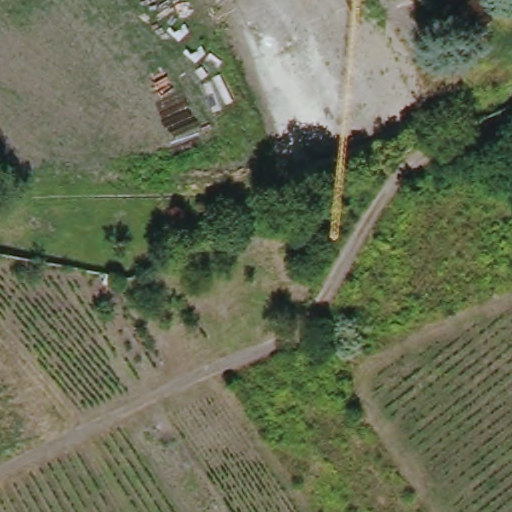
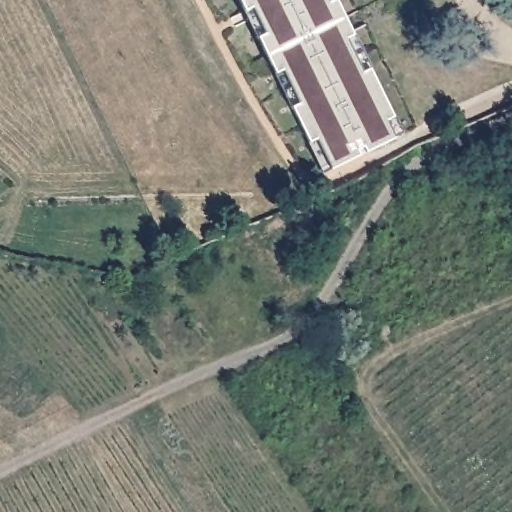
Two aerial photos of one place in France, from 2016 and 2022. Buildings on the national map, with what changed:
new [(330,4),(337,0),(355,36),(347,40),(362,74),(372,69),(395,118),(387,122),(396,139),(367,153),(365,149),(359,150),(361,157),(331,170),(317,140),(310,144),(292,107),(300,104),(285,70),(275,75),(258,38),(266,34),(255,9),(245,13),(239,0),(327,0),(330,4)]
demolished [(367,118),(355,122),(346,97),(358,92),(367,118)]

